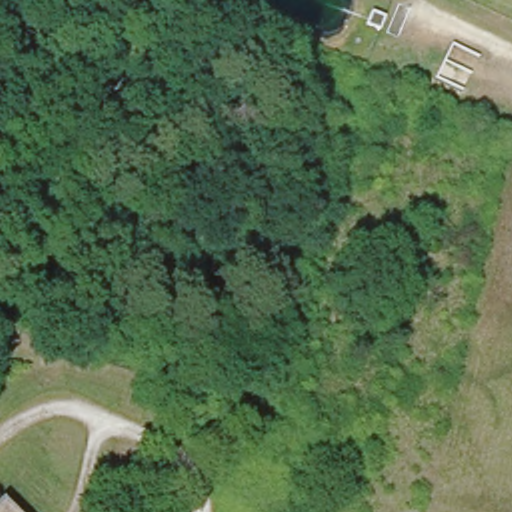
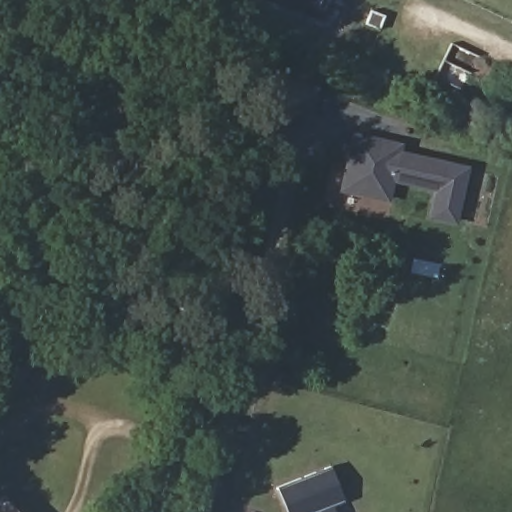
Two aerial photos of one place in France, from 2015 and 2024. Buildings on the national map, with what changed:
new [(427,218),(433,191),(395,184),(390,203),(341,192),(352,131),(403,141),(401,151),(470,166),(456,225),(427,218)]
new [(316,512),(287,512),(277,488),(332,467),(345,500),(316,512)]
unchanged [(2,490),(24,512),(0,512),(0,493),(2,490)]

